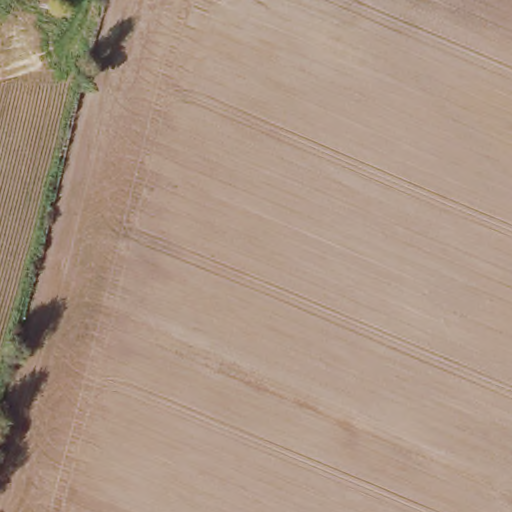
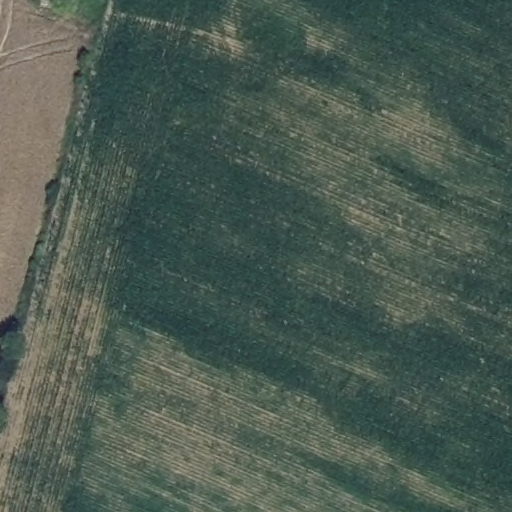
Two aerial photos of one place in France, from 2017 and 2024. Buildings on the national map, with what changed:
unchanged [(45,0),(73,0),(72,14),(44,8),(45,0)]

